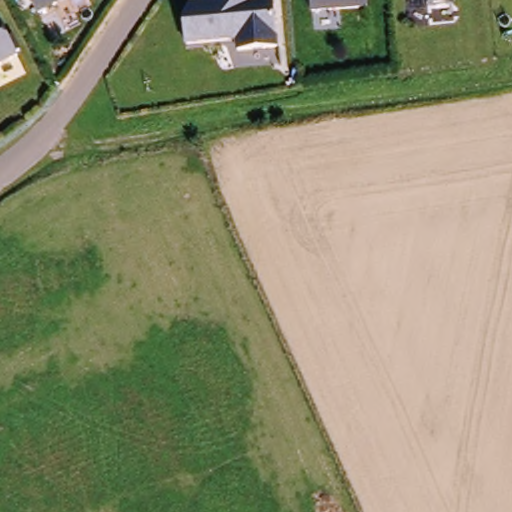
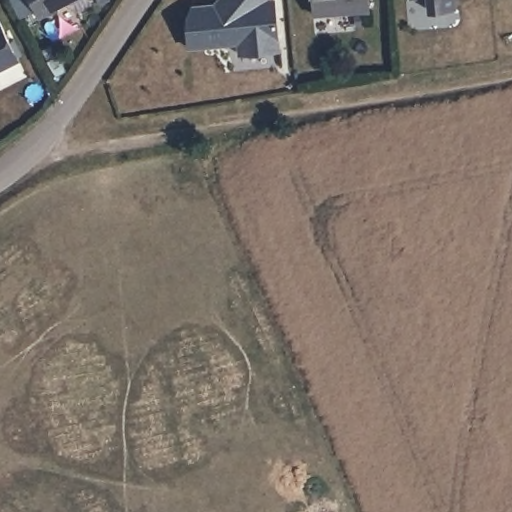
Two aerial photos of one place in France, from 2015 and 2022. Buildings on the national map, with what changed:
unchanged [(38,17),(28,0),(71,0),(38,17)]
unchanged [(182,20),(188,6),(222,3),(225,0),(268,0),(276,50),(236,53),(235,42),(185,46),(182,20)]
unchanged [(309,0),(365,0),(366,15),(310,19),(309,0)]
unchanged [(452,6),(425,9),(425,0),(451,0),(452,6)]
unchanged [(17,61),(0,69),(0,28),(17,61)]

